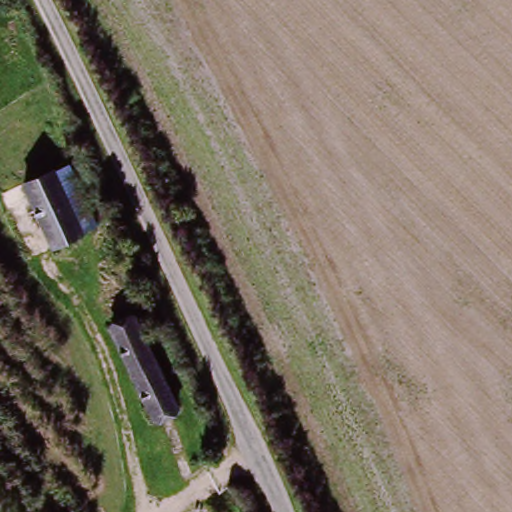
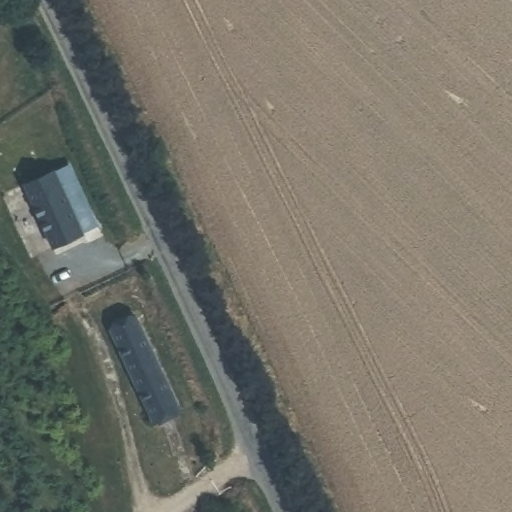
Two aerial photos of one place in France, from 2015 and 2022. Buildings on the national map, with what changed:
unchanged [(82,232),(56,176),(72,169),(97,225),(82,232)]
unchanged [(84,235),(54,249),(25,187),(55,173),(56,176),(82,232),(84,235)]
unchanged [(139,318),(179,408),(152,421),(112,330),(139,318)]

